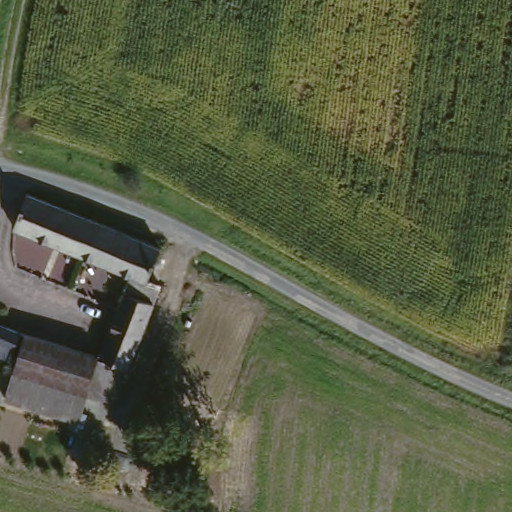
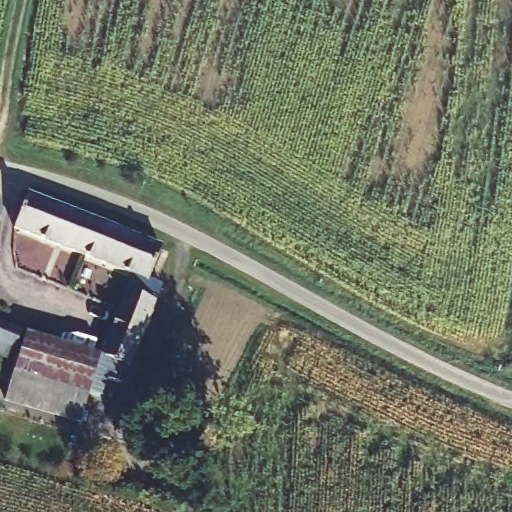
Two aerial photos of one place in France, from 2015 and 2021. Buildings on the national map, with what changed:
unchanged [(8,228),(25,193),(89,221),(75,257),(8,228)]
unchanged [(75,257),(89,221),(159,251),(146,282),(159,287),(151,307),(144,328),(139,343),(130,369),(112,364),(97,361),(128,279),(75,257)]
unchanged [(5,366),(0,363),(0,330),(16,337),(5,366)]
unchanged [(73,424),(5,401),(25,340),(96,361),(83,397),(73,424)]
unchanged [(112,364),(130,369),(116,407),(83,397),(96,361),(97,361),(112,364)]

